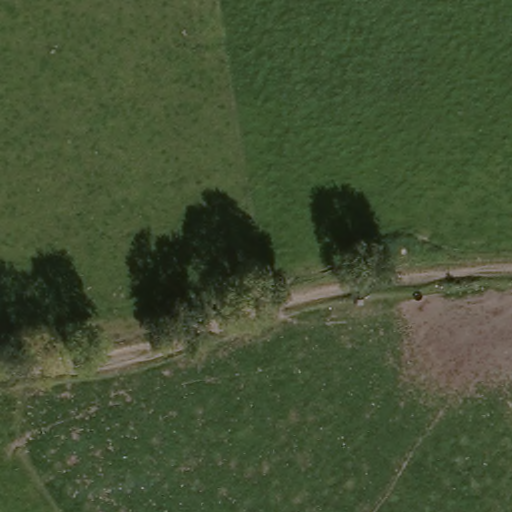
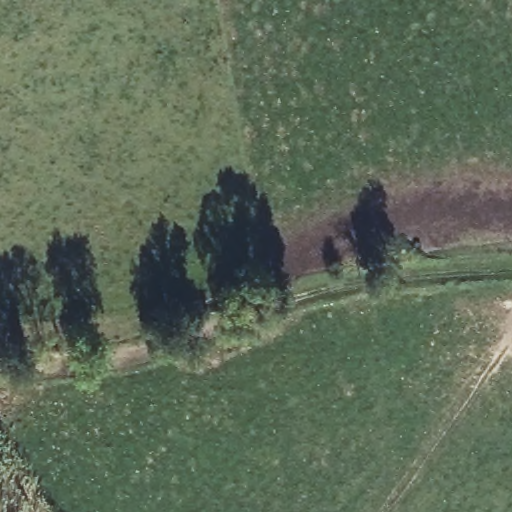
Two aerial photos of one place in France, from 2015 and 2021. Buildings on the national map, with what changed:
[]

